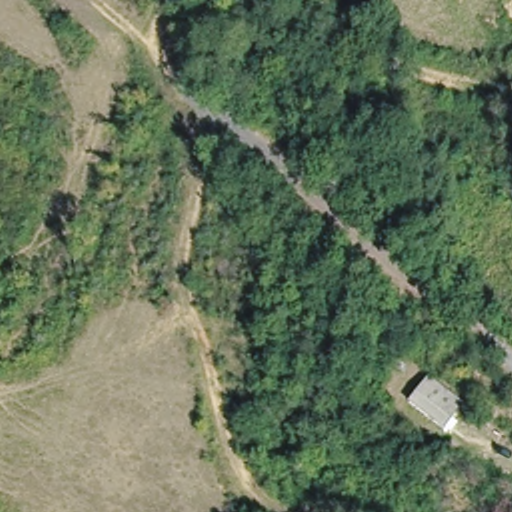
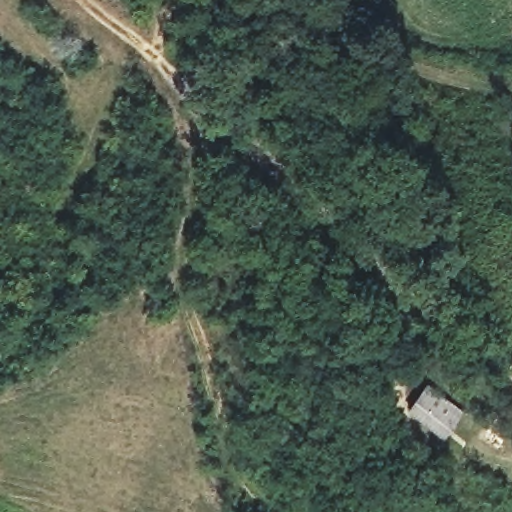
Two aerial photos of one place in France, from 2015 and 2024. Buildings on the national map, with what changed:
unchanged [(419,390),(454,418),(441,435),(405,406),(419,390)]

